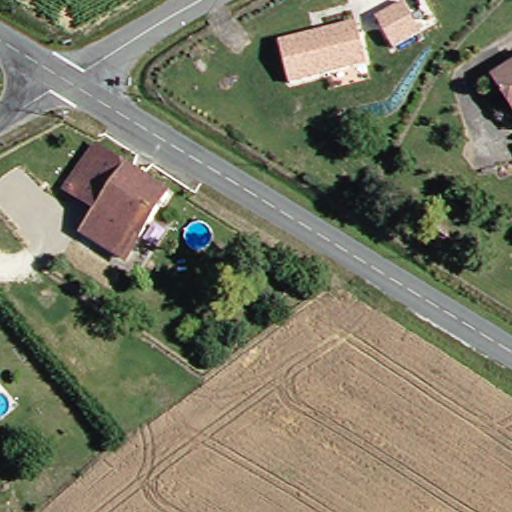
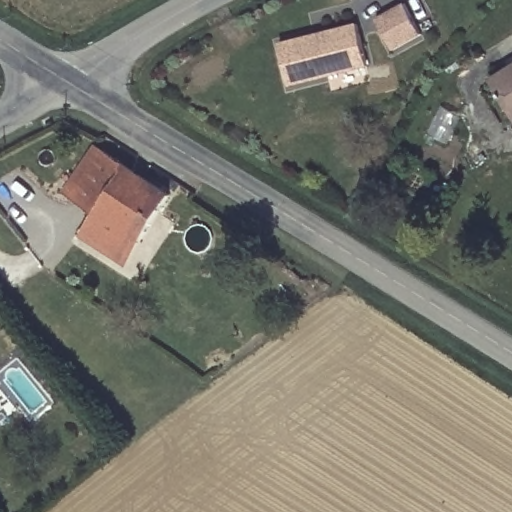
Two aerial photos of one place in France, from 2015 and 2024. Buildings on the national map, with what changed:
unchanged [(395,5),(403,0),(421,31),(414,35),(393,47),(376,17),(395,5)]
unchanged [(280,45),(356,23),(368,64),(329,75),(292,86),(280,45)]
unchanged [(512,72),(512,93),(503,77),(512,72)]
unchanged [(130,272),(85,245),(102,217),(72,198),(102,149),(177,194),(149,242),(146,240),(131,262),(135,264),(130,272)]

